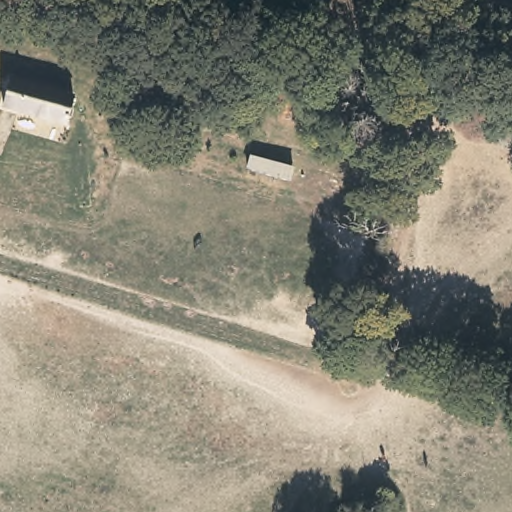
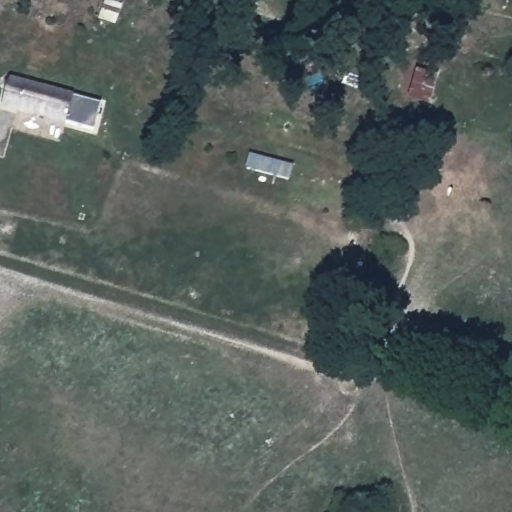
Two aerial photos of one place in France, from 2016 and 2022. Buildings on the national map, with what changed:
unchanged [(0,111),(7,78),(76,93),(69,124),(0,111)]

